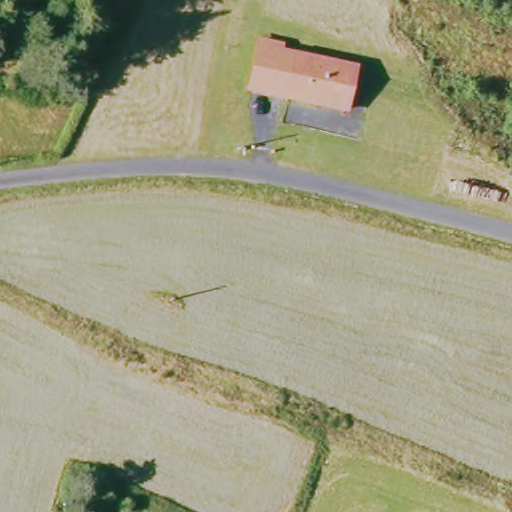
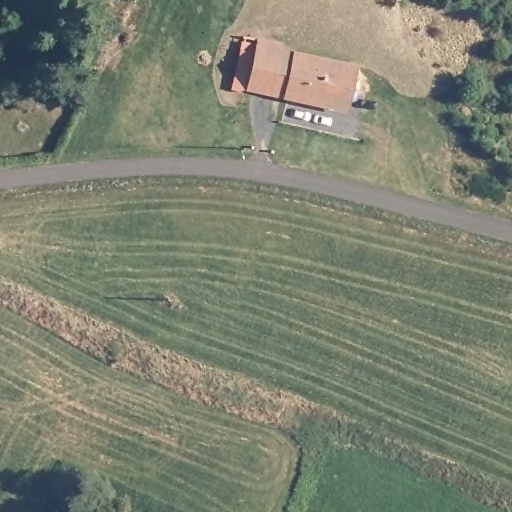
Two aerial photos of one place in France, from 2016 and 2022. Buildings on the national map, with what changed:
unchanged [(320,105),(254,92),(265,47),(361,67),(353,101),(351,111),(320,105)]

